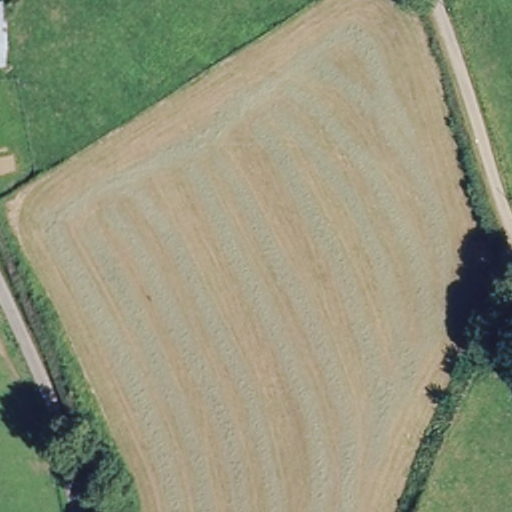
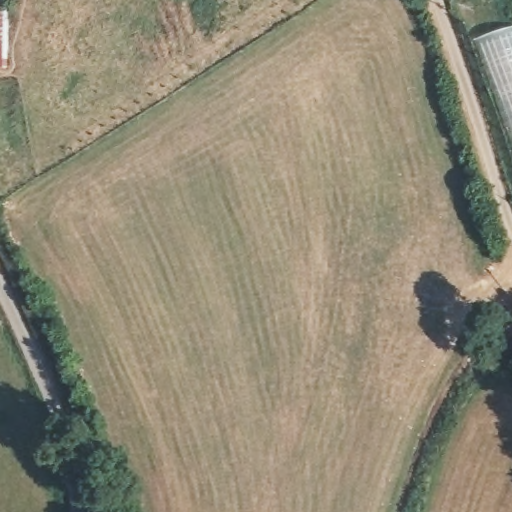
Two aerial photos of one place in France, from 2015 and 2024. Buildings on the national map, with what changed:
unchanged [(5,19),(2,64),(0,64),(0,18),(5,19)]
new [(512,29),(512,136),(476,40),(511,28),(512,29)]

